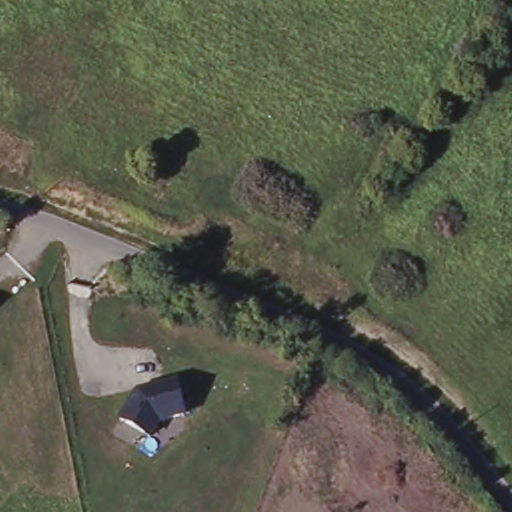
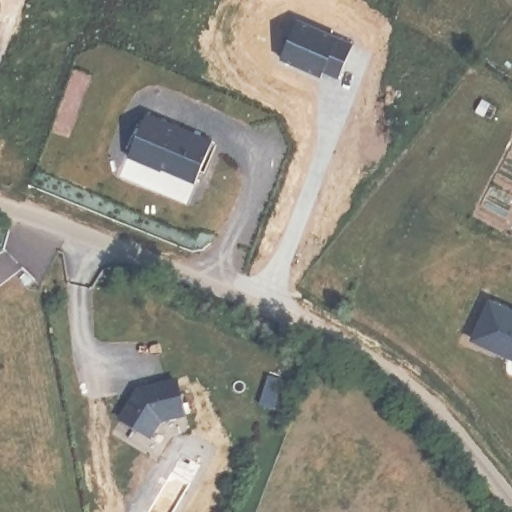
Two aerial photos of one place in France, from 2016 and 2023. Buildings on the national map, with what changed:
new [(347,41),(327,82),(279,55),(297,14),(347,41)]
new [(143,110),(212,139),(194,177),(127,153),(143,110)]
new [(485,333),(512,293),(512,351),(485,333)]
unchanged [(158,425),(150,441),(116,422),(139,387),(179,378),(187,418),(158,425)]

